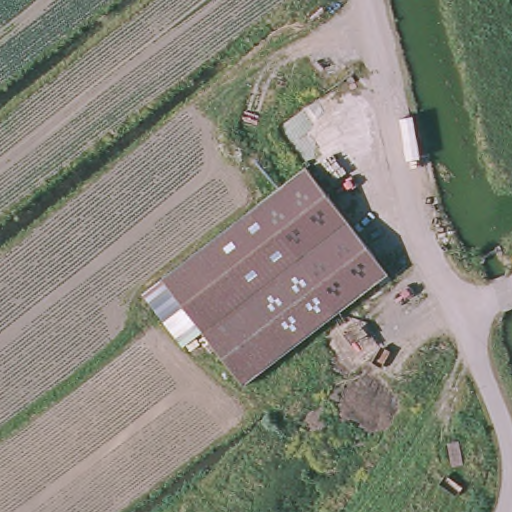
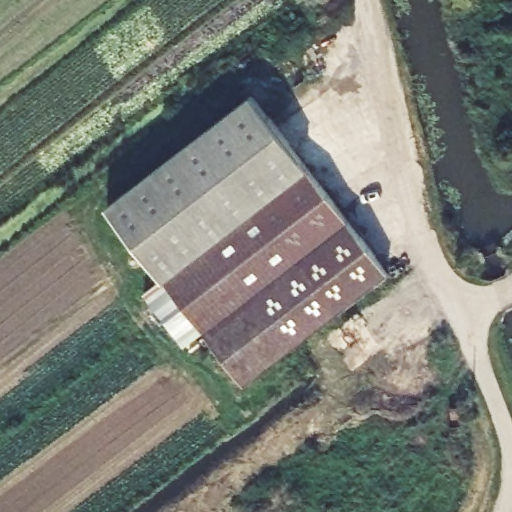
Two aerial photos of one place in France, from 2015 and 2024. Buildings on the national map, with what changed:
new [(166,278),(107,204),(252,91),(311,168),(166,278)]
unchanged [(311,168),(394,278),(247,387),(207,333),(166,278),(311,168)]
unchanged [(186,347),(146,293),(166,278),(207,333),(186,347)]

